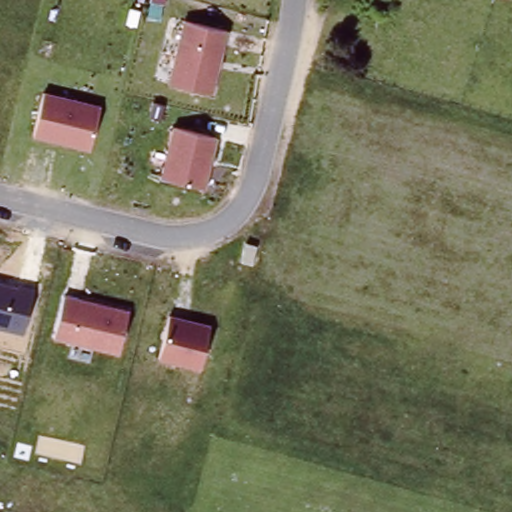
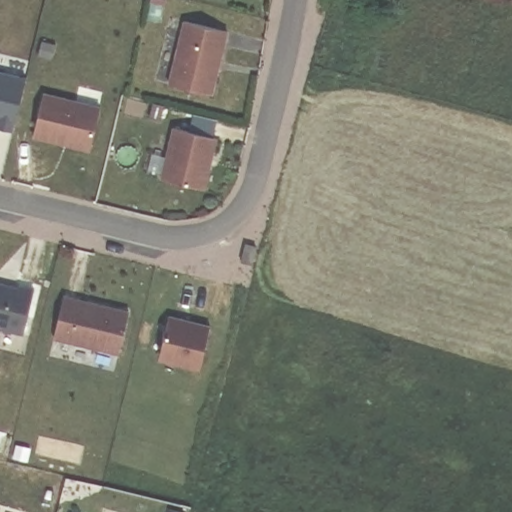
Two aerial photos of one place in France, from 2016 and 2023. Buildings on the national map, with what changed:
unchanged [(213,93),(168,82),(183,19),(227,33),(213,93)]
new [(13,131),(0,128),(0,70),(26,77),(13,131)]
unchanged [(43,92),(100,106),(90,150),(33,136),(43,92)]
unchanged [(205,188),(161,176),(173,125),(217,139),(205,188)]
unchanged [(32,290),(23,333),(0,327),(0,282),(32,290)]
unchanged [(118,354),(53,337),(65,293),(129,309),(118,354)]
unchanged [(159,358),(169,314),(210,323),(199,368),(159,358)]

